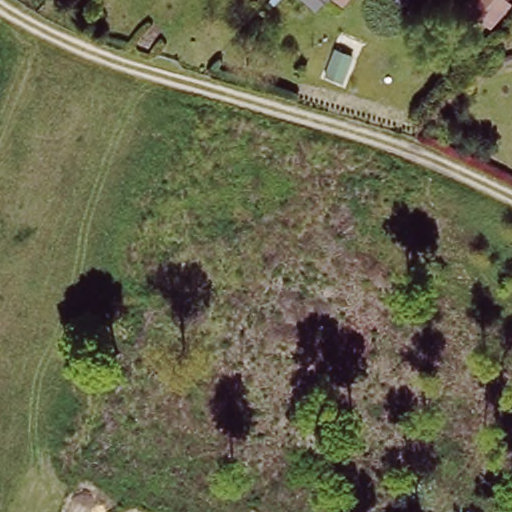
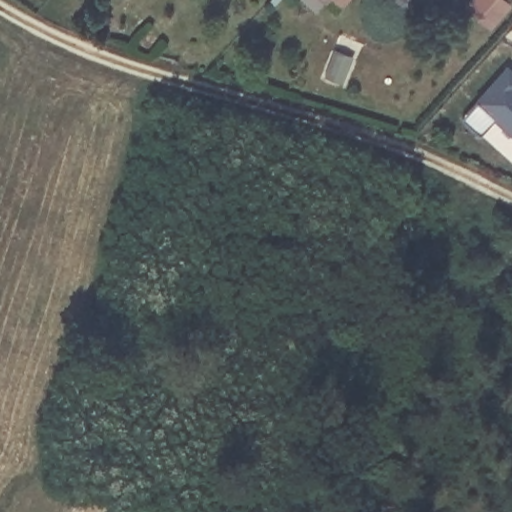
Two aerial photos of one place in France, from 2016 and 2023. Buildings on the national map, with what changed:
new [(491,30),(465,6),(471,0),(507,0),(512,5),(512,6),(491,30)]
new [(495,119),(481,134),(464,118),(479,100),(477,99),(508,63),(512,67),(512,134),(495,119)]

